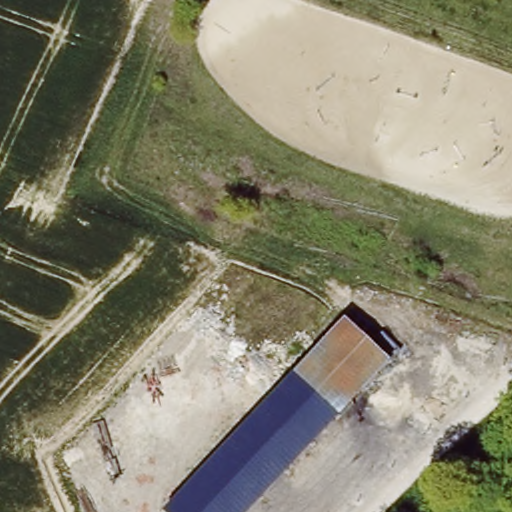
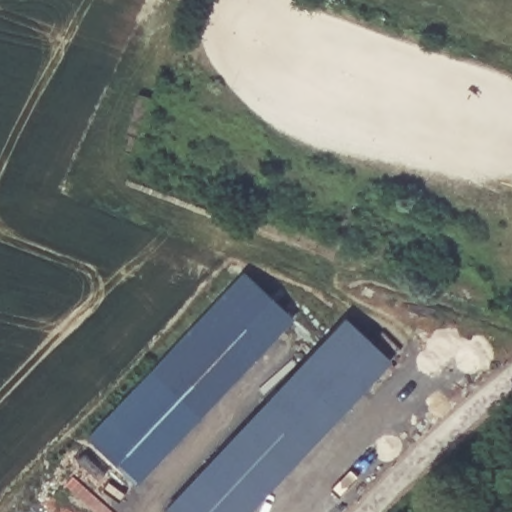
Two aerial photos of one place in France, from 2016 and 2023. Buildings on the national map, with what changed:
new [(243,273),(292,319),(136,485),(86,437),(243,273)]
unchanged [(393,359),(249,512),(166,512),(163,510),(344,317),(393,359)]

